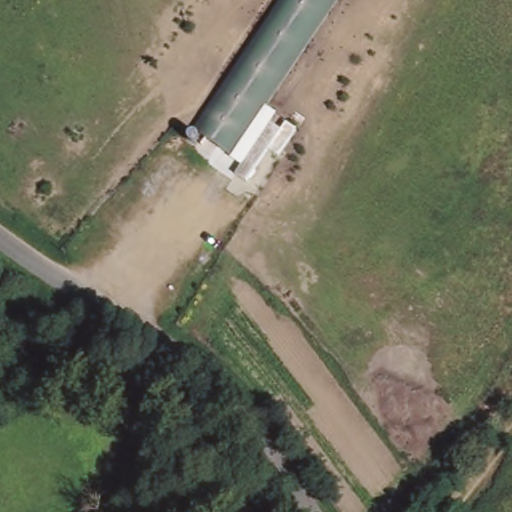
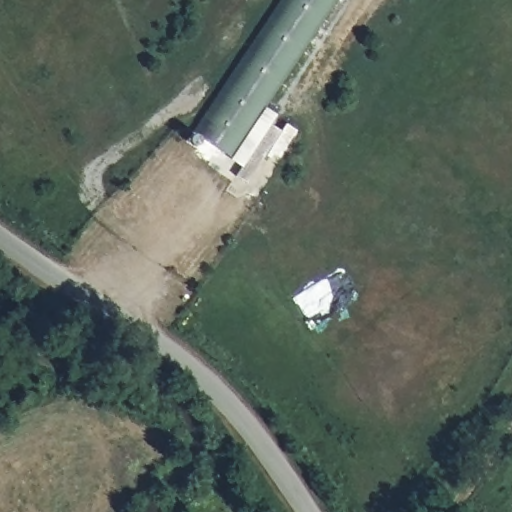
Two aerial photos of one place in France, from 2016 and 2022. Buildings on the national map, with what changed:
unchanged [(278,115),(273,125),(282,130),(286,123),(298,129),(257,189),(235,177),(242,166),(192,133),(280,0),(337,0),(266,108),(278,115)]

